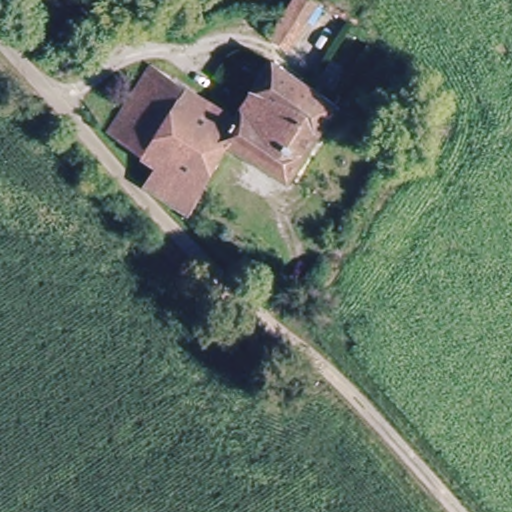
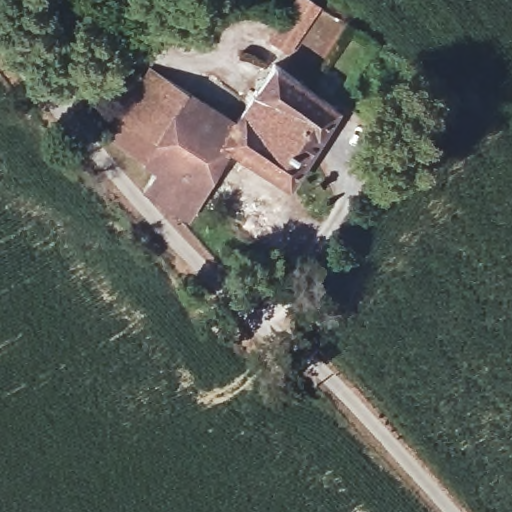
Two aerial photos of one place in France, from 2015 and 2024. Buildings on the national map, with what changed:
unchanged [(280,49),(266,37),(289,7),(294,0),(317,0),(280,49)]
unchanged [(285,180),(223,140),(178,209),(140,181),(139,179),(150,163),(135,152),(180,87),(234,120),(264,73),(272,61),(336,106),(285,180)]
unchanged [(105,134),(144,68),(180,87),(135,152),(105,134)]

